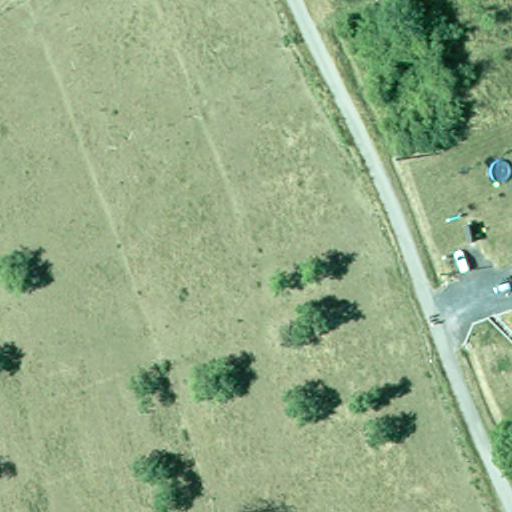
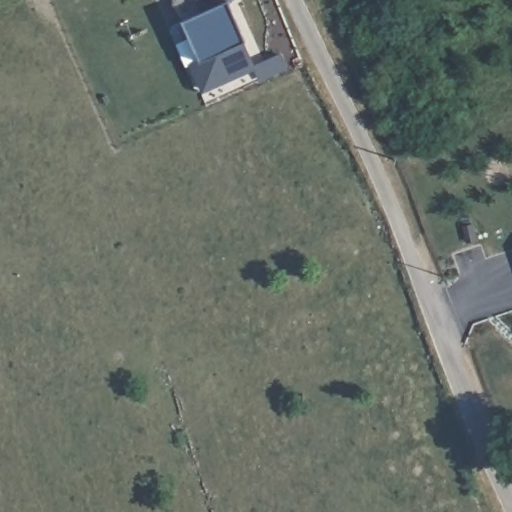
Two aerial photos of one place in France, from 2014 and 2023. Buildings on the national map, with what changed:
new [(200,60),(182,20),(204,10),(199,0),(236,0),(230,2),(246,41),(255,69),(201,95),(188,64),(200,60)]

